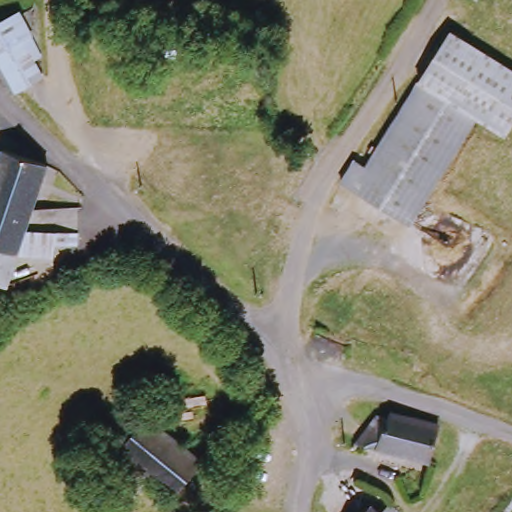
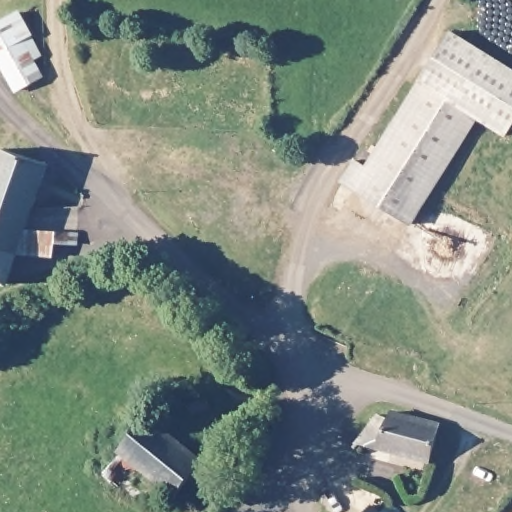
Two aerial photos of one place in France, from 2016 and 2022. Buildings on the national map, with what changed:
unchanged [(39,65),(48,81),(22,95),(0,56),(0,30),(24,17),(47,60),(39,65)]
unchanged [(505,141),(476,124),(410,229),(342,187),(355,164),(367,172),(452,36),(512,74),(512,130),(505,141)]
unchanged [(77,249),(54,249),(53,262),(18,260),(8,289),(0,287),(0,163),(3,154),(48,170),(26,236),(77,238),(77,249)]
unchanged [(382,453),(360,449),(382,420),(395,424),(397,416),(445,429),(435,467),(382,453)]
unchanged [(120,455),(150,422),(204,467),(175,501),(153,483),(122,457),(120,455)]
unchanged [(153,483),(135,504),(104,479),(122,457),(153,483)]
unchanged [(390,509),(393,512),(388,512),(390,509)]
unchanged [(372,511),(374,512),(371,512),(372,511)]

